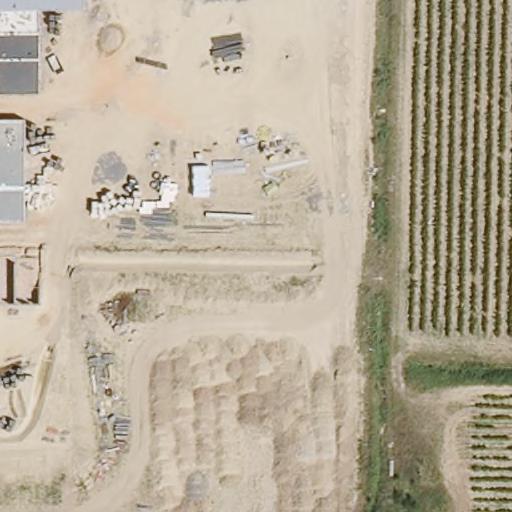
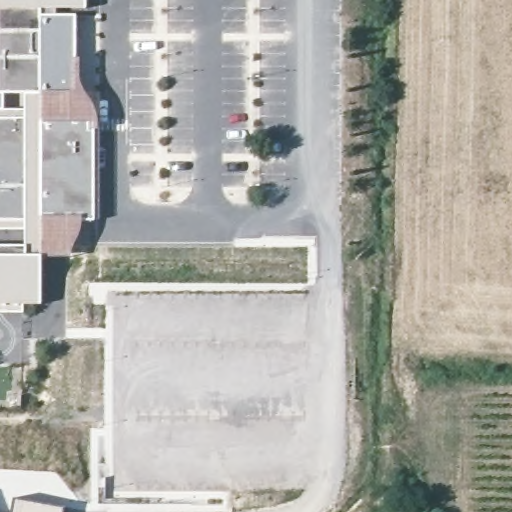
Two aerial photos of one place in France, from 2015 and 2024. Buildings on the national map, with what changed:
unchanged [(41,8),(40,93),(0,92),(0,0),(87,0),(87,7),(41,8)]
new [(56,14),(76,14),(76,57),(79,57),(79,78),(83,88),(92,104),(96,113),(98,124),(100,220),(95,220),(81,220),(80,226),(78,238),(72,250),(70,257),(40,259),(40,254),(40,213),(40,93),(41,8),(56,8),(56,14)]
new [(25,93),(40,93),(40,254),(25,255),(25,245),(0,245),(0,108),(25,107),(25,93)]
new [(25,255),(40,254),(40,304),(23,305),(23,311),(0,312),(0,245),(25,245),(25,255)]
new [(13,498),(63,508),(63,512),(12,512),(13,498)]

